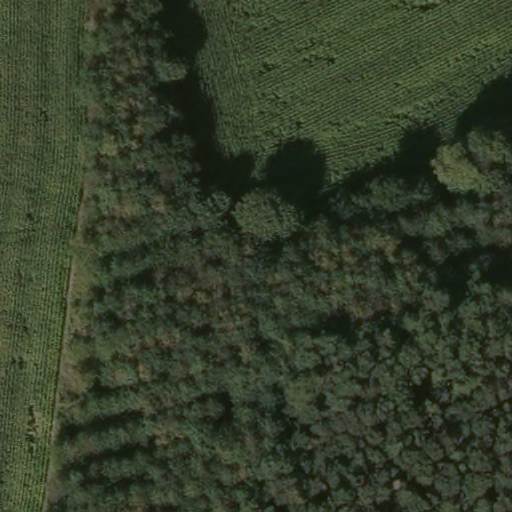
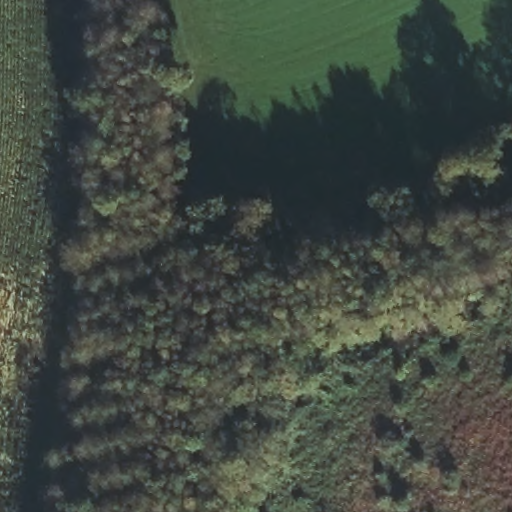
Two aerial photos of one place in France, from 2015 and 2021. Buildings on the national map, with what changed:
[]

